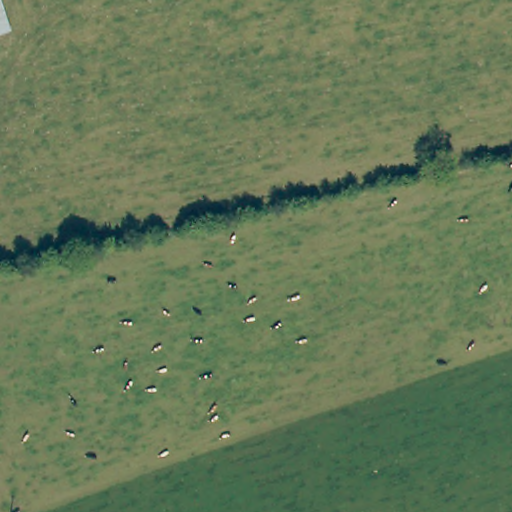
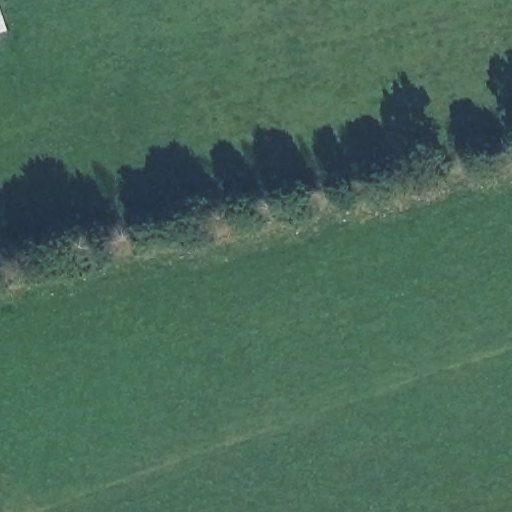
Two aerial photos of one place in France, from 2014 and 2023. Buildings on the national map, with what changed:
unchanged [(3,27),(0,28),(0,18),(3,27)]

